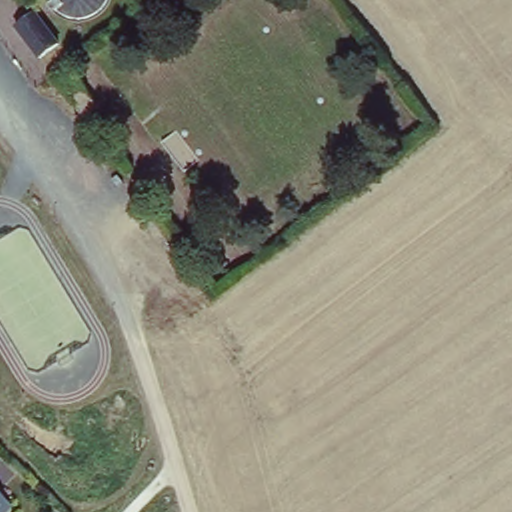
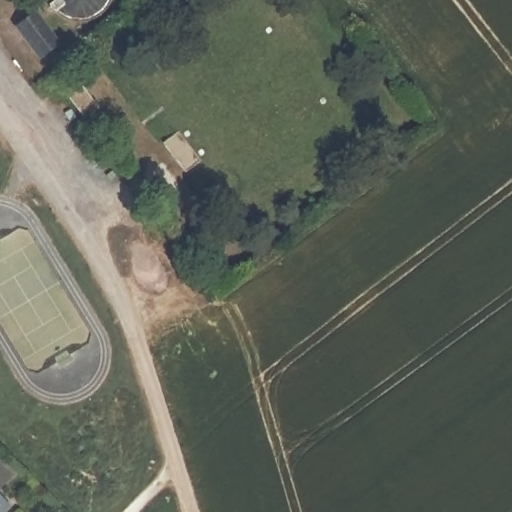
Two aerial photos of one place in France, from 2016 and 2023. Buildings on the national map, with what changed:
unchanged [(30,10),(54,42),(35,56),(11,24),(30,10)]
unchanged [(72,76),(97,110),(85,120),(60,85),(72,76)]
unchanged [(199,161),(185,172),(162,144),(177,132),(199,161)]
unchanged [(4,512),(0,512),(0,500),(7,507),(4,512)]

